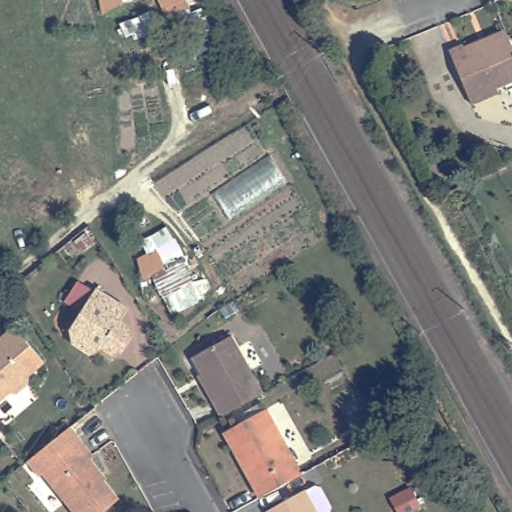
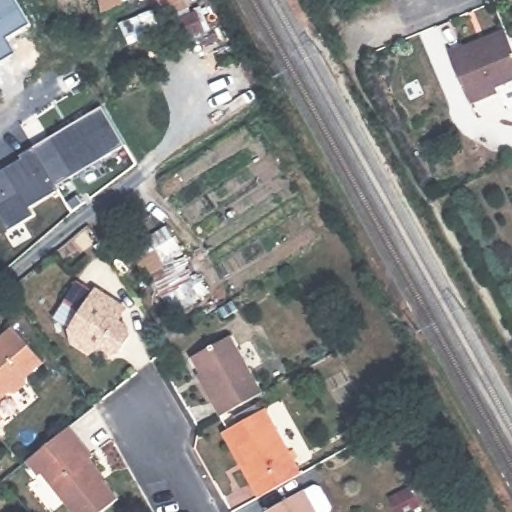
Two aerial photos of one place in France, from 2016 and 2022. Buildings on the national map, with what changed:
unchanged [(503,98),(476,109),(453,55),(468,49),(509,32),(512,39),(512,88),(501,93),(503,98)]
new [(71,124),(102,106),(126,145),(57,187),(34,147),(64,129),(71,124)]
new [(34,147),(57,187),(59,190),(30,208),(34,215),(8,231),(0,218),(0,171),(21,159),(20,155),(34,147)]
unchanged [(171,238),(186,262),(169,272),(154,248),(171,238)]
unchanged [(160,291),(158,287),(182,274),(202,312),(177,325),(160,291)]
unchanged [(129,309),(121,322),(131,329),(133,337),(123,352),(114,354),(99,344),(93,354),(76,344),(74,329),(84,313),(68,303),(81,282),(98,293),(99,290),(129,309)]
unchanged [(28,376),(28,384),(16,395),(11,390),(0,399),(0,339),(14,328),(44,362),(28,376)]
unchanged [(243,404),(220,417),(204,388),(207,386),(192,358),(231,336),(263,393),(243,404)]
unchanged [(223,432),(265,409),(301,474),(260,498),(223,432)]
unchanged [(366,438),(356,419),(369,412),(380,431),(366,438)]
unchanged [(46,479),(44,481),(31,466),(65,439),(74,431),(98,462),(95,464),(106,479),(105,481),(123,504),(113,512),(73,512),(46,479)]
unchanged [(267,511),(304,490),(304,492),(315,486),(320,487),(331,507),(330,512),(267,512),(267,511)]

